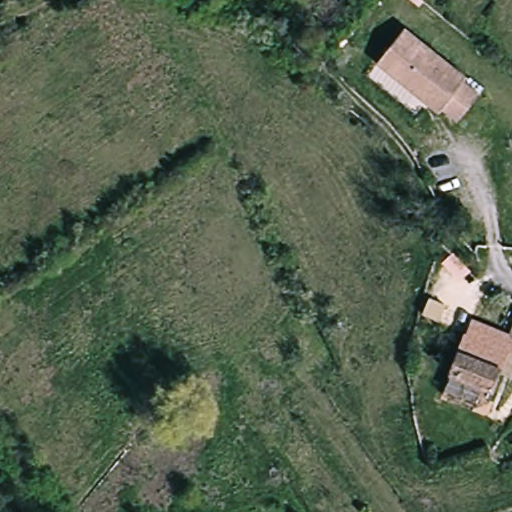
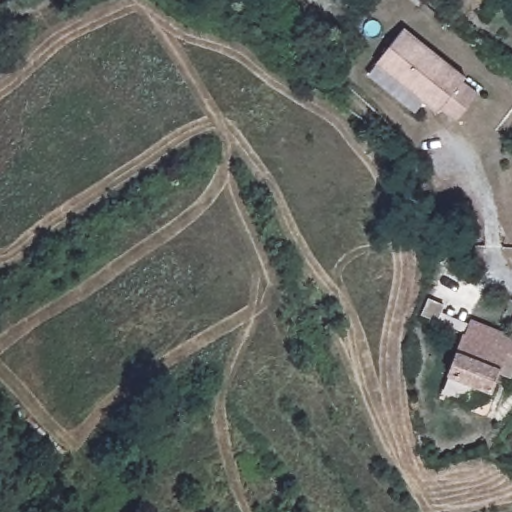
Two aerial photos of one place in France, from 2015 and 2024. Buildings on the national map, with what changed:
unchanged [(407,21),(459,76),(454,81),(470,97),(447,119),(432,102),(427,106),(420,97),(377,50),(407,21)]
unchanged [(502,370),(495,388),(453,372),(474,323),(512,336),(512,374),(502,370)]
unchanged [(487,409),(445,393),(453,372),(495,388),(487,409)]

